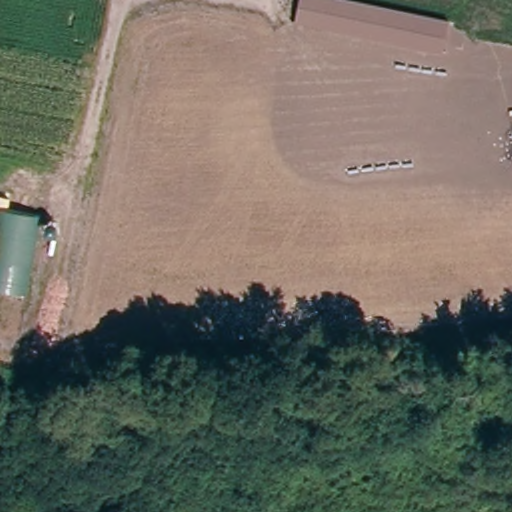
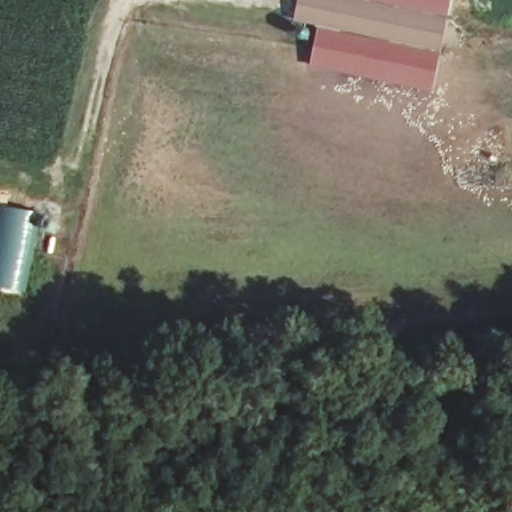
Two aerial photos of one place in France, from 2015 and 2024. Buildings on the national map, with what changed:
demolished [(357,0),(445,19),(439,49),(295,19),(298,0),(357,0)]
new [(318,24),(295,19),(299,0),(450,0),(433,91),(310,66),(318,24)]
unchanged [(26,292),(0,286),(0,207),(40,214),(26,292)]

